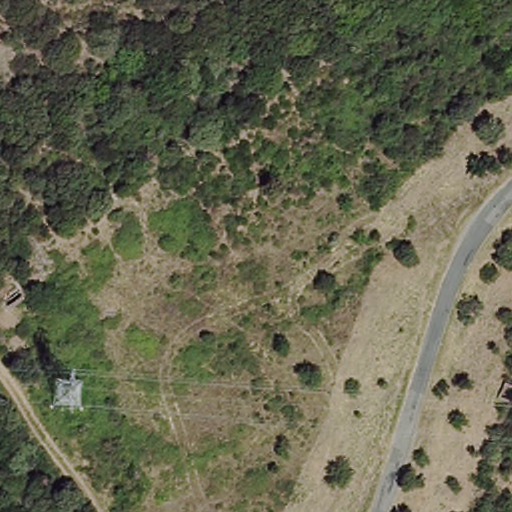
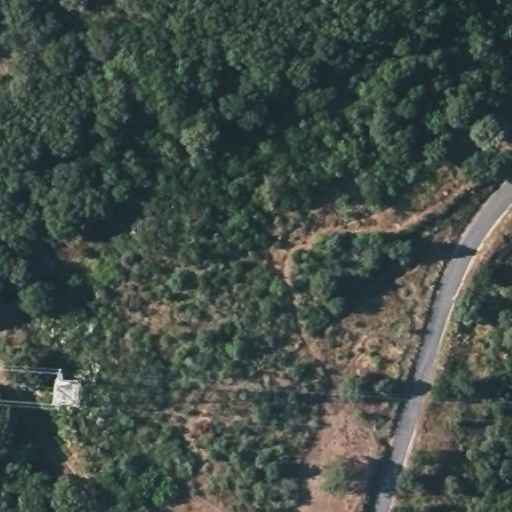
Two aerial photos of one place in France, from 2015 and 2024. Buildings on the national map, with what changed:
unchanged [(497,399),(505,382),(512,385),(512,405),(497,399)]

